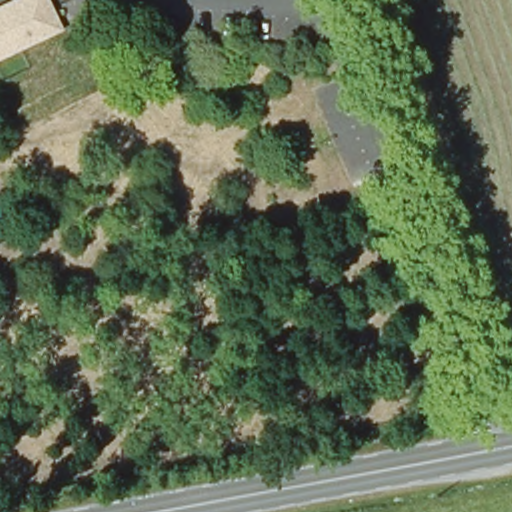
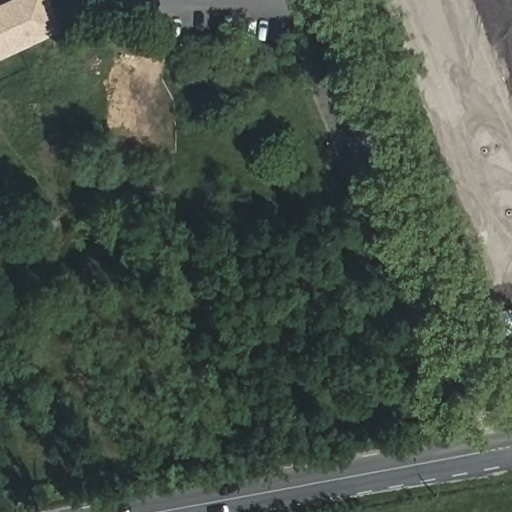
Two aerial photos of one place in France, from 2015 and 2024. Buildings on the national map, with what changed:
unchanged [(0,60),(0,4),(10,0),(49,0),(63,31),(0,60)]

